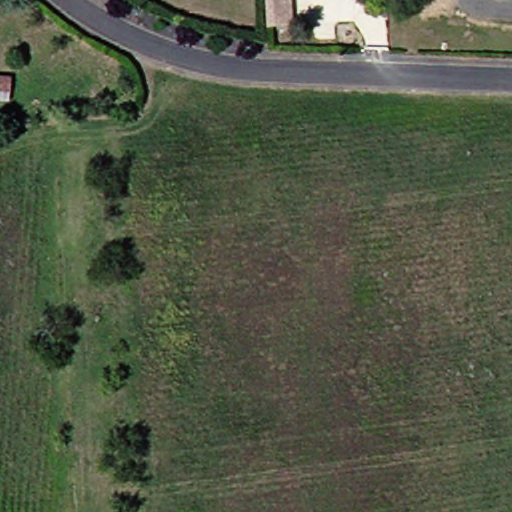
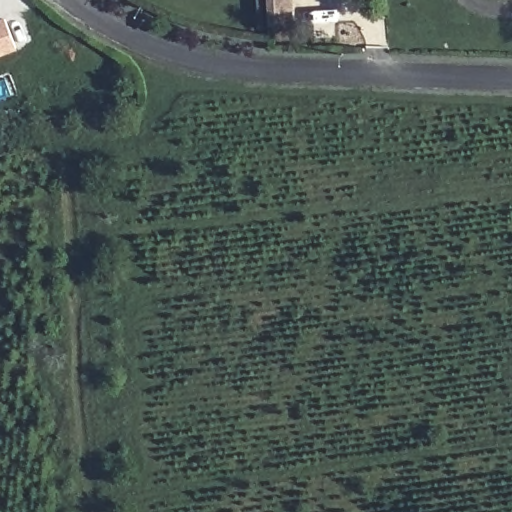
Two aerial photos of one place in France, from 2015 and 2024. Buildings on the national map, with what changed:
unchanged [(290,22),(267,23),(266,0),(289,0),(290,22)]
new [(17,50),(0,57),(0,19),(5,17),(17,50)]
unchanged [(0,98),(0,75),(12,76),(10,99),(0,98)]

